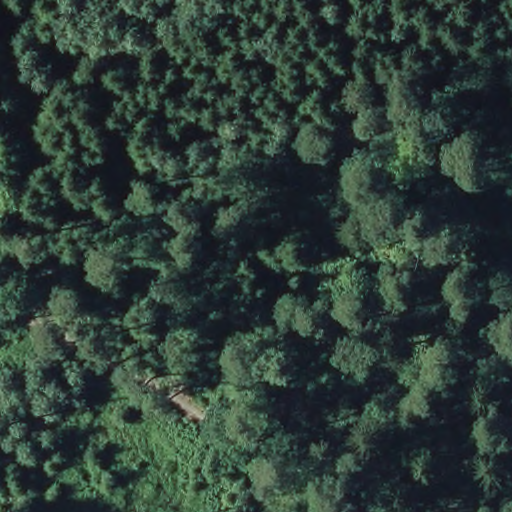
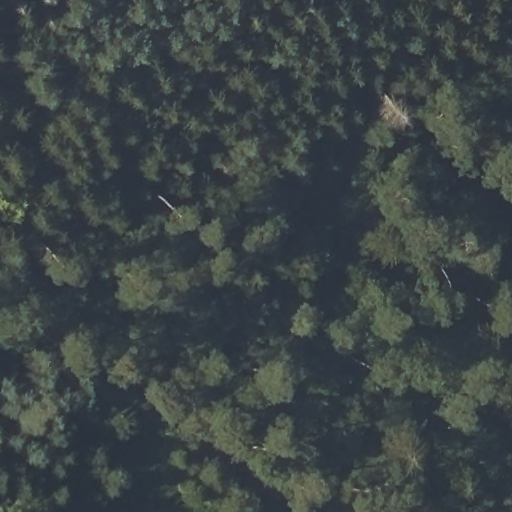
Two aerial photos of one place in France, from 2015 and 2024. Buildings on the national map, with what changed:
[]

